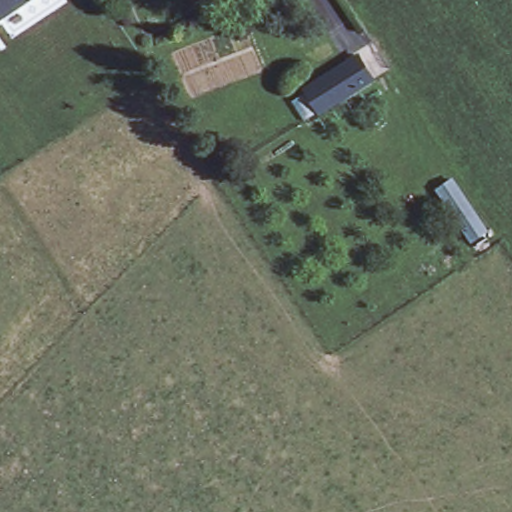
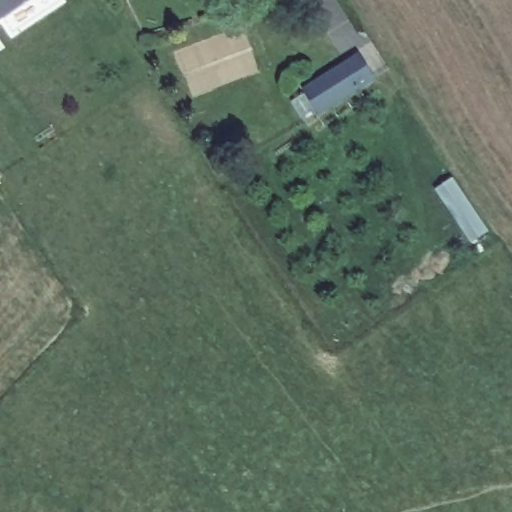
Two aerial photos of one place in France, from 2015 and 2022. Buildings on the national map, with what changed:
unchanged [(32,0),(0,21),(0,0),(32,0)]
unchanged [(375,80),(321,116),(306,93),(360,59),(375,80)]
unchanged [(452,183),(486,233),(471,244),(437,193),(452,183)]

